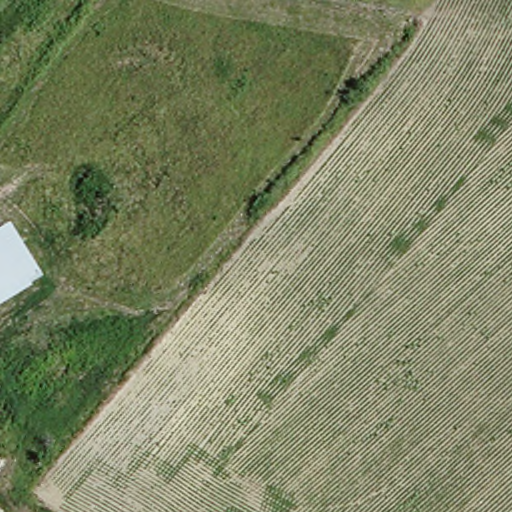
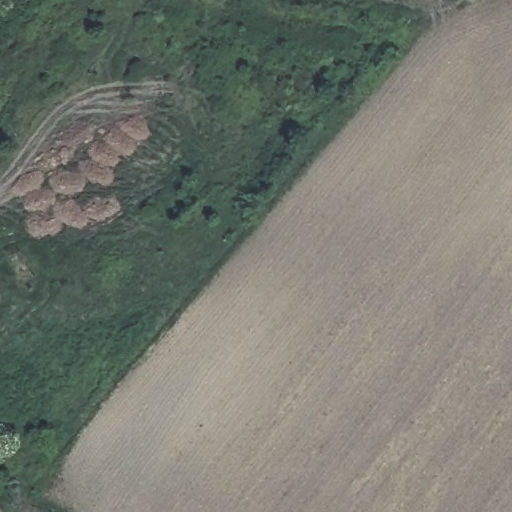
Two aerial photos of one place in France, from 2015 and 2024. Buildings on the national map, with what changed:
demolished [(10,225),(44,279),(0,310),(0,232),(10,225)]

